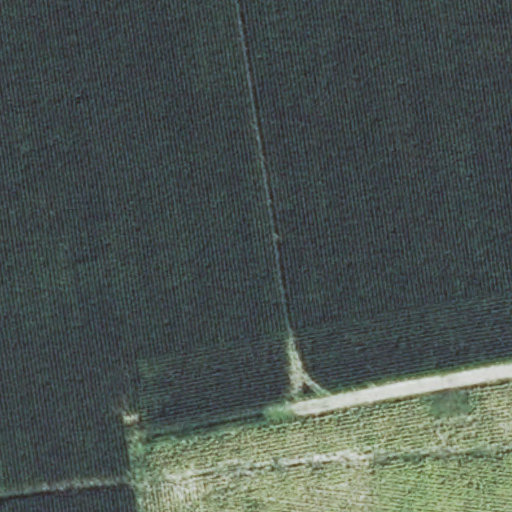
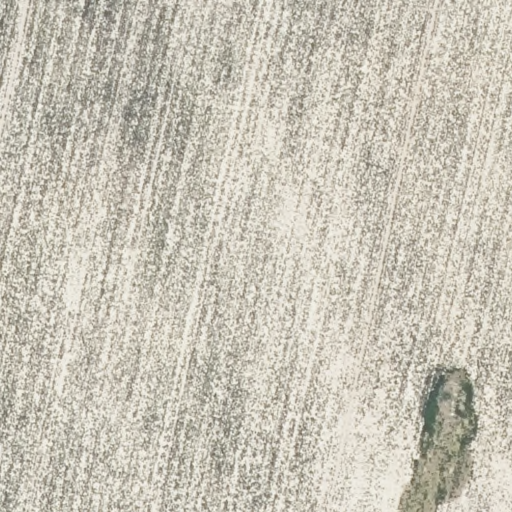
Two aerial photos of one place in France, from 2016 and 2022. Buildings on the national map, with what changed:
[]

